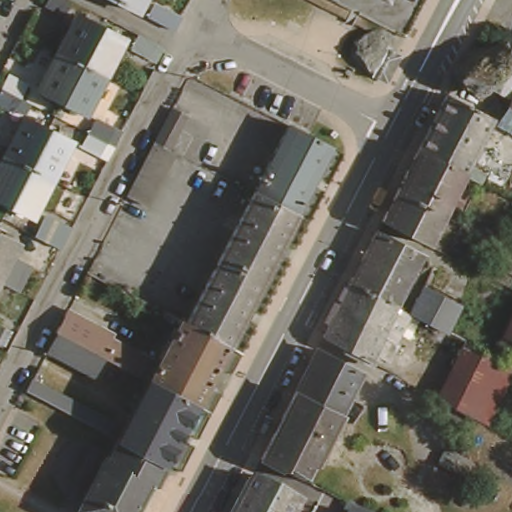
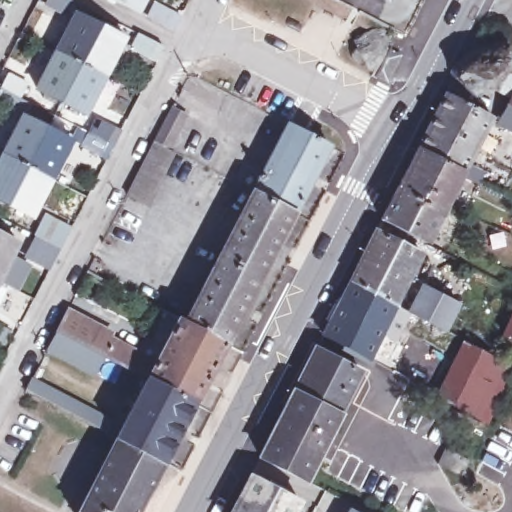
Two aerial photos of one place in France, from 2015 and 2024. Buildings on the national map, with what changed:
unchanged [(58,8),(46,0),(63,0),(58,8)]
unchanged [(141,9),(124,0),(145,0),(141,9)]
unchanged [(154,7),(164,13),(159,24),(148,18),(154,7)]
unchanged [(59,47),(78,12),(90,19),(93,13),(104,19),(83,60),(59,47)]
unchanged [(104,19),(114,26),(111,31),(124,38),(105,72),(83,60),(104,19)]
unchanged [(479,59),(506,38),(512,48),(512,65),(510,67),(512,69),(512,89),(495,121),(489,119),(466,108),(471,97),(451,80),(469,52),(479,59)]
unchanged [(58,106),(47,100),(50,94),(38,86),(59,47),(83,60),(58,106)]
unchanged [(389,47),(399,53),(383,84),(371,78),(389,47)]
unchanged [(84,112),(71,105),(68,112),(58,106),(83,60),(105,72),(84,112)]
unchanged [(0,81),(4,74),(18,82),(10,96),(3,109),(0,108),(0,81)]
unchanged [(495,121),(512,89),(512,130),(495,121)]
unchanged [(443,97),(466,108),(489,119),(461,173),(414,152),(443,97)]
unchanged [(144,203),(119,190),(148,137),(166,105),(181,112),(163,145),(173,150),(144,203)]
unchanged [(23,114),(35,121),(39,114),(50,120),(28,161),(4,148),(23,114)]
unchanged [(71,145),(78,133),(85,119),(103,129),(95,142),(88,155),(71,145)]
unchanged [(50,120),(59,125),(56,131),(69,139),(50,174),(28,161),(50,120)]
unchanged [(336,147),(300,214),(258,193),(295,126),(336,147)]
unchanged [(0,156),(4,148),(28,161),(4,204),(0,202),(0,156)]
unchanged [(443,208),(413,193),(396,185),(414,152),(461,173),(443,208)]
unchanged [(50,174),(29,211),(17,203),(13,209),(4,204),(28,161),(50,174)]
unchanged [(396,185),(413,193),(443,208),(424,245),(377,222),(396,185)]
unchanged [(258,193),(300,214),(228,345),(186,323),(258,193)]
unchanged [(22,231),(34,209),(60,223),(48,246),(22,231)]
unchanged [(2,236),(15,244),(0,272),(0,228),(5,231),(2,236)]
unchanged [(392,308),(344,284),(369,236),(418,259),(392,308)]
unchanged [(389,345),(376,338),(364,362),(315,338),(344,284),(392,308),(406,314),(407,315),(389,345)]
unchanged [(420,288),(457,306),(443,332),(407,315),(406,314),(420,288)]
unchanged [(126,382),(121,379),(116,387),(51,352),(61,332),(70,316),(108,337),(104,344),(153,371),(161,356),(208,381),(195,404),(149,380),(133,371),(126,382)]
unchanged [(228,345),(208,381),(161,356),(181,321),(186,323),(228,345)]
unchanged [(498,353),(506,339),(512,327),(512,360),(498,353)]
unchanged [(493,408),(439,382),(462,341),(512,366),(512,371),(493,408)]
unchanged [(330,415),(284,391),(308,348),(353,371),(330,415)]
unchanged [(113,422),(107,432),(30,391),(36,380),(113,422)]
unchanged [(133,410),(126,406),(131,398),(137,401),(149,380),(195,404),(163,463),(118,438),(133,410)]
unchanged [(439,382),(493,408),(486,423),(431,397),(439,382)]
unchanged [(330,415),(297,478),(250,455),(284,391),(330,415)]
unchanged [(81,467),(93,444),(109,453),(118,438),(163,463),(137,512),(77,512),(89,490),(79,484),(73,481),(81,467)]
unchanged [(424,464),(431,450),(452,461),(444,474),(424,464)]
unchanged [(266,475),(269,469),(288,479),(285,484),(299,492),(288,512),(278,512),(238,491),(251,467),(266,475)]
unchanged [(278,512),(226,512),(238,491),(278,512)]
unchanged [(379,512),(352,512),(352,511),(358,501),(379,512)]

